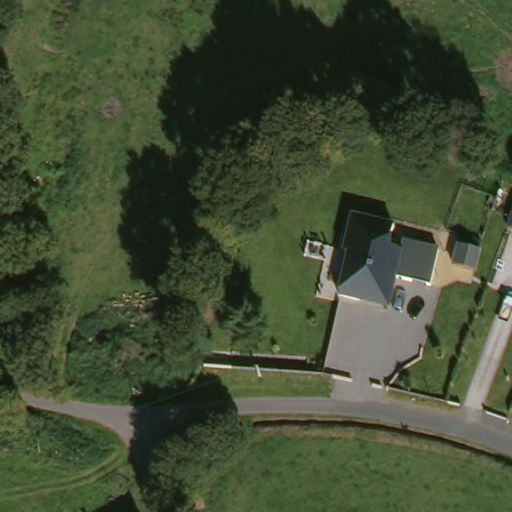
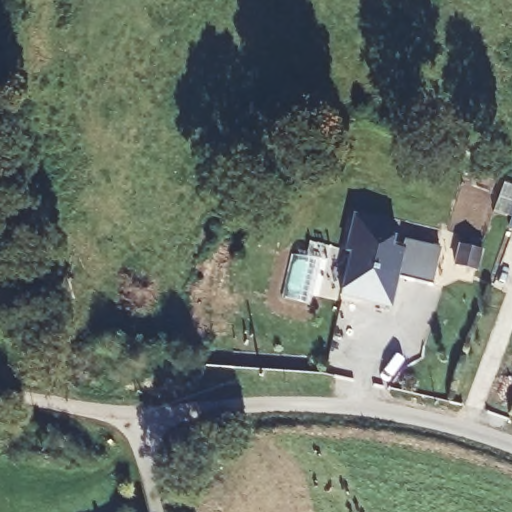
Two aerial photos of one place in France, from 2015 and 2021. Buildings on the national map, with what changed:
unchanged [(427,286),(393,278),(388,303),(356,296),(355,300),(337,295),(346,252),(341,251),(349,215),(390,225),(386,246),(396,250),(398,242),(433,250),(427,286)]
unchanged [(488,249),(484,270),(463,266),(466,245),(488,249)]
unchanged [(140,512),(143,511),(143,512),(140,512)]

